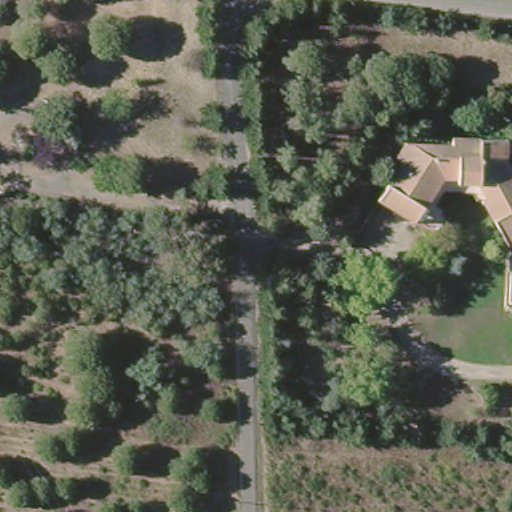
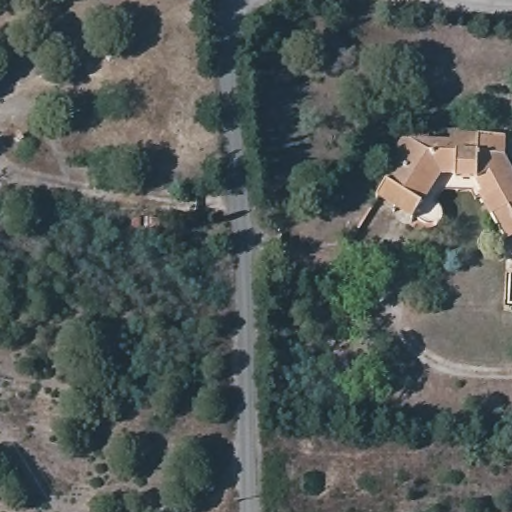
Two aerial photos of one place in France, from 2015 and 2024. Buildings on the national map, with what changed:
unchanged [(512,175),(512,231),(501,238),(476,191),(470,194),(466,187),(439,187),(430,199),(435,201),(436,204),(438,206),(438,209),(438,211),(438,213),(438,215),(438,217),(436,220),(434,222),(433,224),(430,225),(428,225),(427,225),(425,226),(423,225),(421,225),(419,224),(371,195),(395,157),(388,152),(398,138),(445,139),(446,133),(500,134),(500,154),(512,175)]

